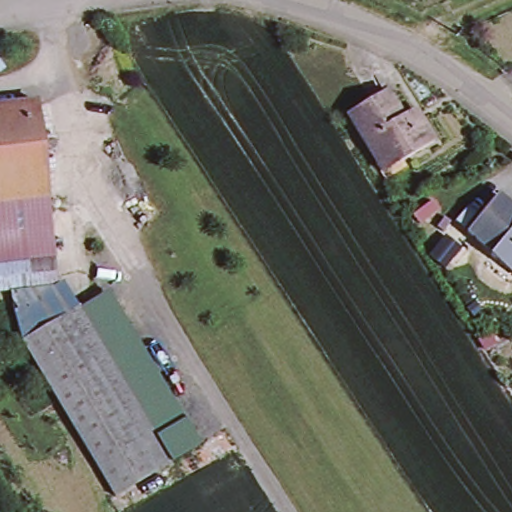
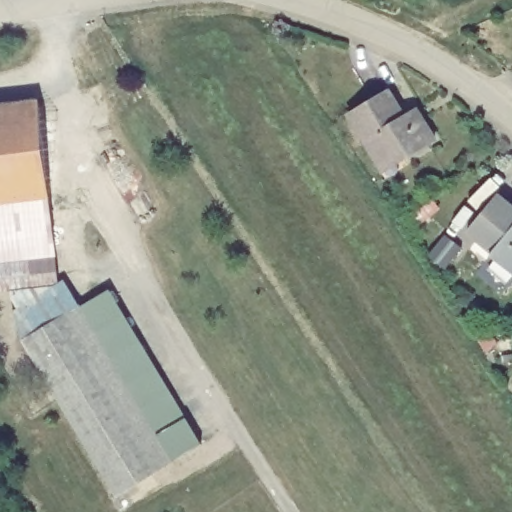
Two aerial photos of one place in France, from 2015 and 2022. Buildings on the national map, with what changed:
unchanged [(50,184),(49,184),(0,189),(0,86),(39,81),(50,184)]
unchanged [(382,177),(372,161),(375,160),(346,114),(385,89),(409,126),(420,119),(432,139),(400,159),(403,164),(382,177)]
unchanged [(55,233),(0,240),(0,189),(49,184),(55,233)]
unchanged [(512,204),(512,274),(489,256),(492,251),(468,233),(498,194),(512,204)]
unchanged [(60,275),(63,305),(17,310),(0,313),(0,240),(55,233),(60,275)]
unchanged [(85,328),(76,312),(111,290),(205,444),(114,499),(27,361),(85,328)]
unchanged [(63,305),(71,304),(76,312),(85,328),(27,361),(21,327),(17,310),(63,305)]

